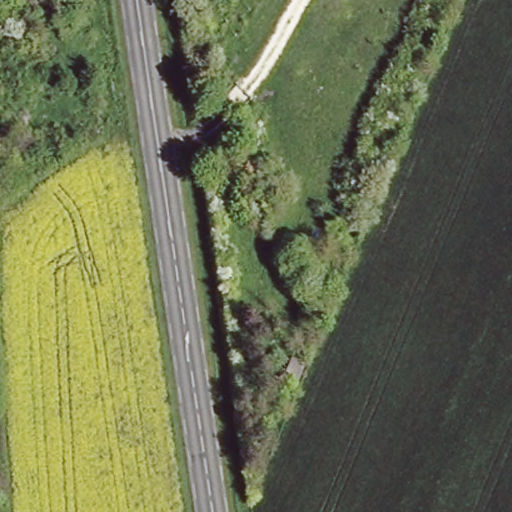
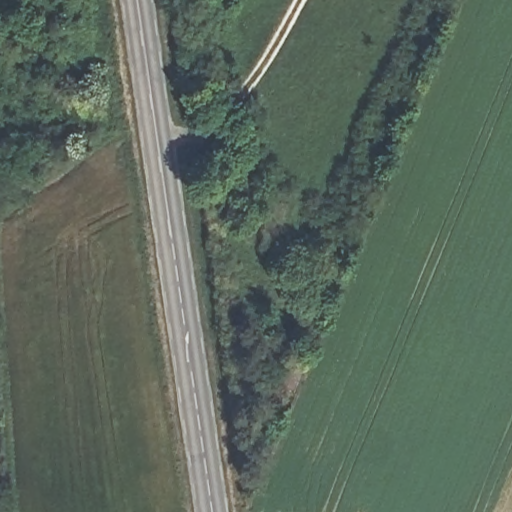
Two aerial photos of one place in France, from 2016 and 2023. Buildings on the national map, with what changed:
unchanged [(272,416),(267,429),(256,424),(261,411),(272,416)]

